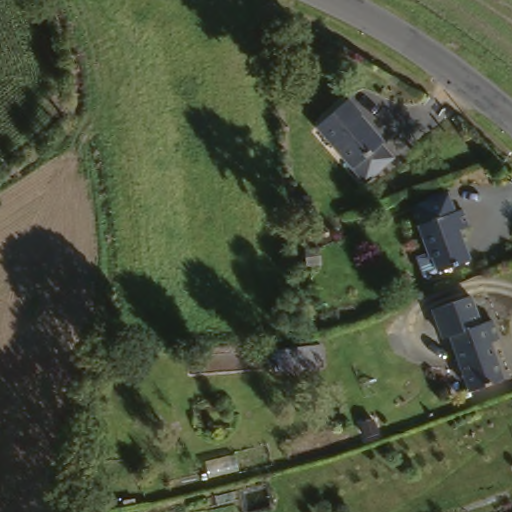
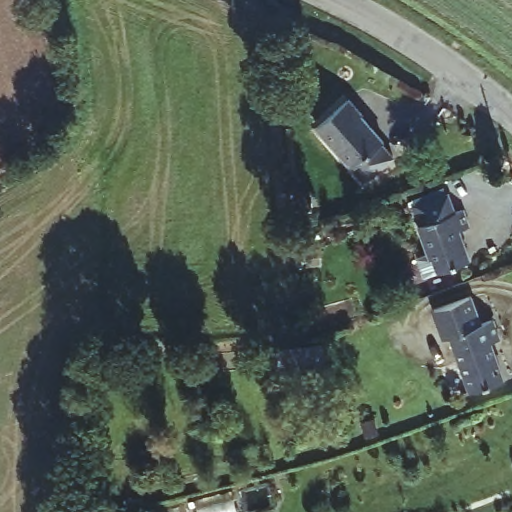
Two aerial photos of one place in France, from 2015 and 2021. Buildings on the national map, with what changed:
unchanged [(316,121),(349,94),(362,110),(361,112),(382,139),(379,140),(392,154),(363,179),(316,121)]
unchanged [(447,190),(454,209),(461,207),(468,224),(458,228),(468,258),(436,269),(431,254),(429,255),(417,223),(418,222),(412,203),(447,190)]
unchanged [(474,292),(483,320),(495,317),(502,337),(493,339),(504,377),(471,388),(453,332),(446,334),(436,304),(474,292)]
unchanged [(302,348),(303,368),(280,370),(279,350),(302,348)]

